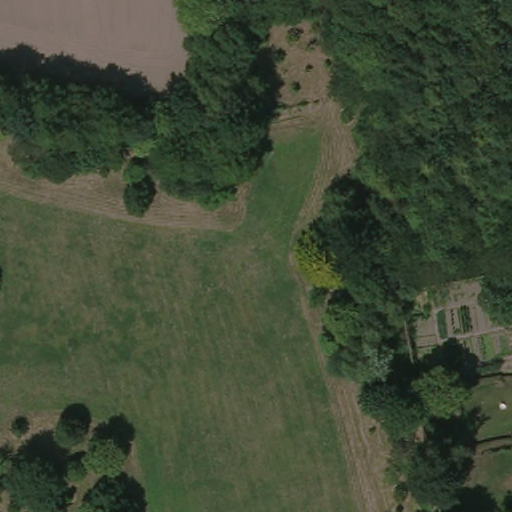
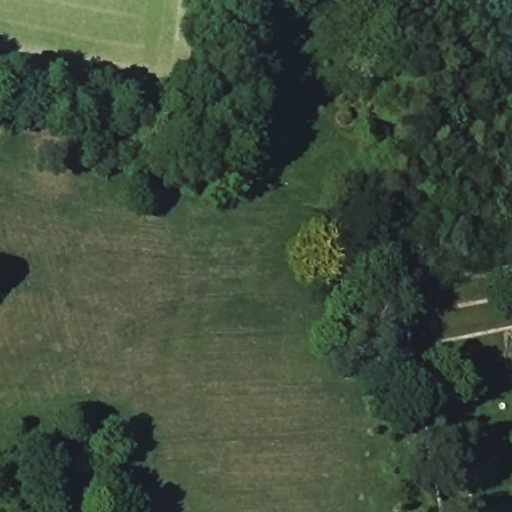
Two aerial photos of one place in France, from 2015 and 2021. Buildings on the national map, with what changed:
unchanged [(512,268),(512,274),(511,268),(512,268)]

